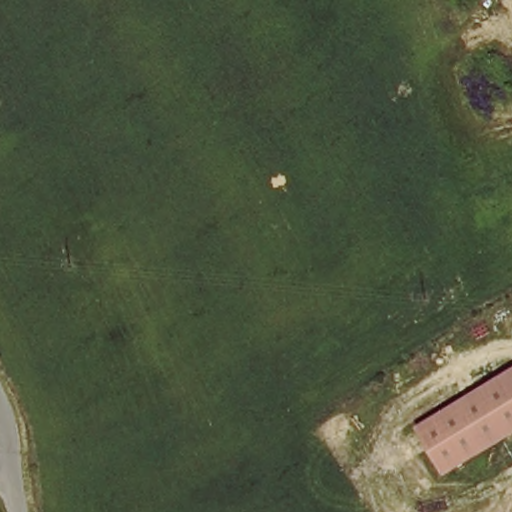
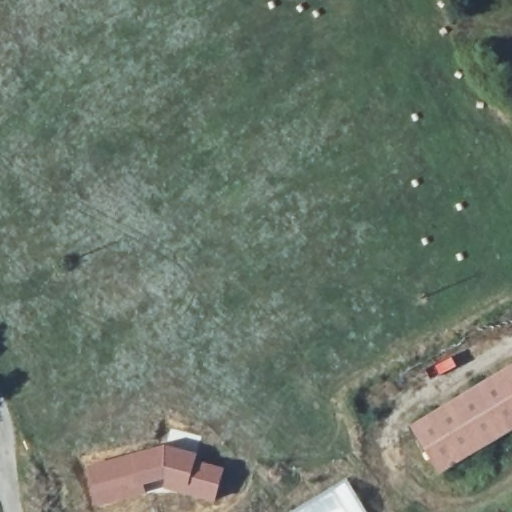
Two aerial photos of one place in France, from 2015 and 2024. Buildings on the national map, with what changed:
unchanged [(411,419),(512,374),(512,437),(434,472),(411,419)]
new [(163,445),(197,454),(196,460),(224,468),(214,503),(162,489),(162,487),(145,486),(147,495),(93,508),(83,463),(163,445)]
new [(346,481),(367,512),(294,512),(346,481)]

